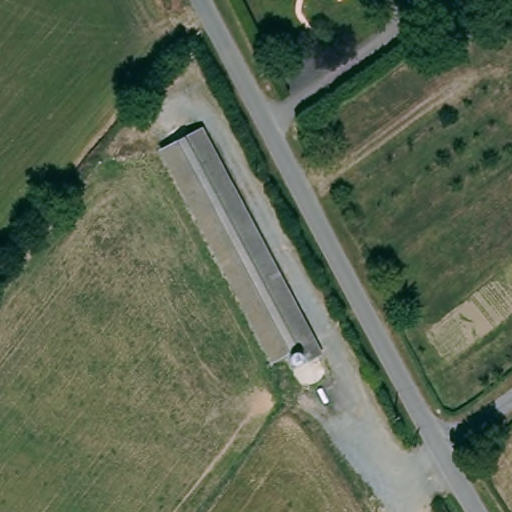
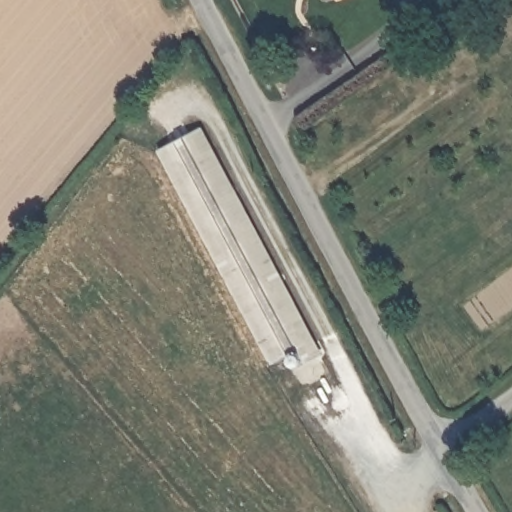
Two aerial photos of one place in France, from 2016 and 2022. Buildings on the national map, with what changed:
unchanged [(202,123),(323,349),(300,361),(292,348),(266,360),(152,147),(202,123)]

